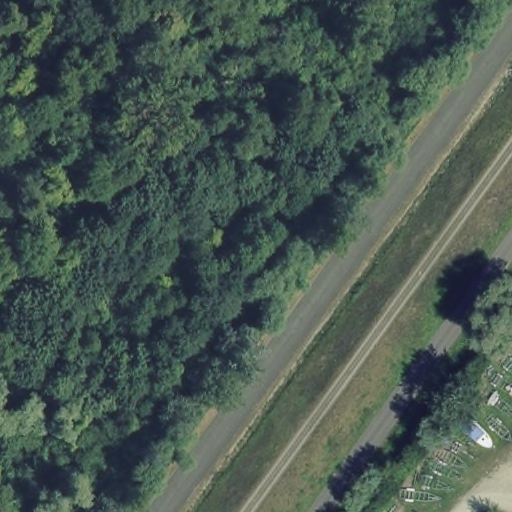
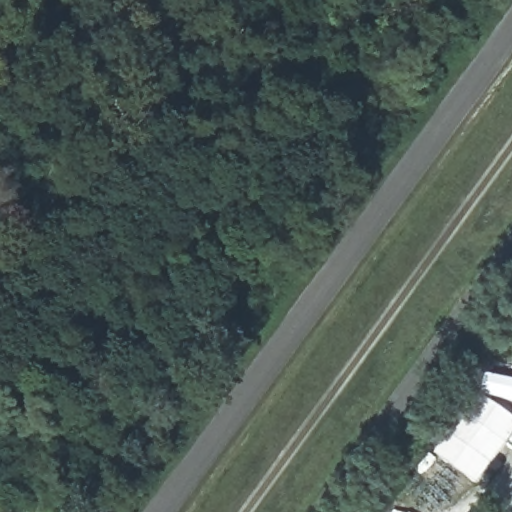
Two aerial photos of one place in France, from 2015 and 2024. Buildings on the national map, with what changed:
new [(512,379),(512,400),(489,393),(494,375),(512,379)]
new [(512,415),(512,434),(477,484),(436,454),(481,397),(512,415)]

